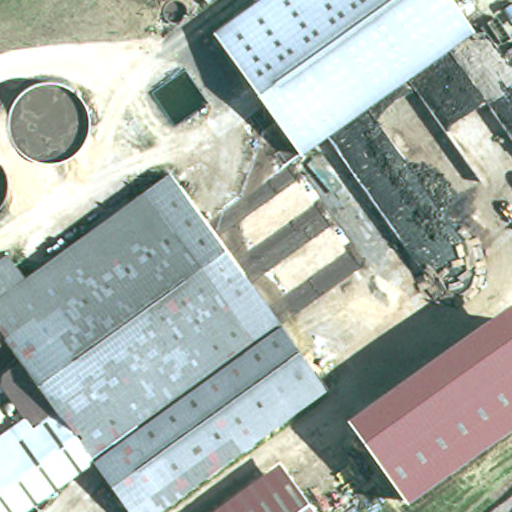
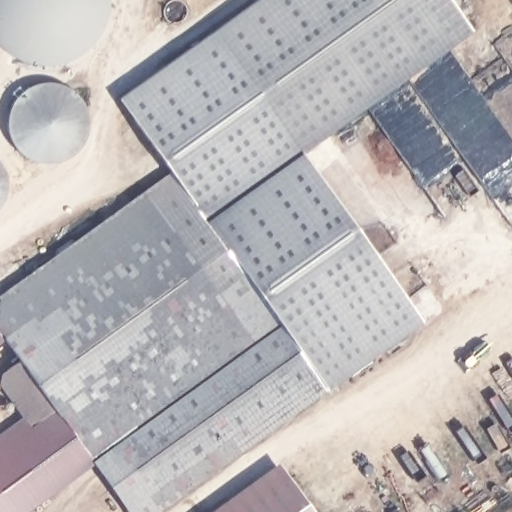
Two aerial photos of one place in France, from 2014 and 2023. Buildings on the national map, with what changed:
unchanged [(298,155),(212,31),(253,0),(453,0),(475,30),(298,155)]
new [(212,31),(298,155),(205,223),(119,97),(212,31)]
new [(422,318),(322,391),(244,279),(205,223),(298,155),(303,151),(422,318)]
unchanged [(168,182),(238,283),(244,279),(322,391),(326,397),(166,512),(128,512),(96,467),(33,512),(0,512),(0,458),(60,416),(57,413),(33,431),(0,385),(0,379),(22,364),(7,344),(0,349),(0,298),(26,280),(168,182)]
new [(23,416),(33,431),(57,413),(60,416),(0,458),(0,432),(23,416)]
unchanged [(314,512),(209,512),(277,463),(314,512)]

